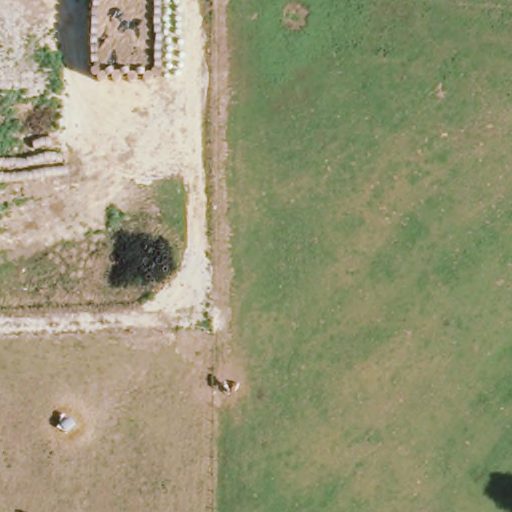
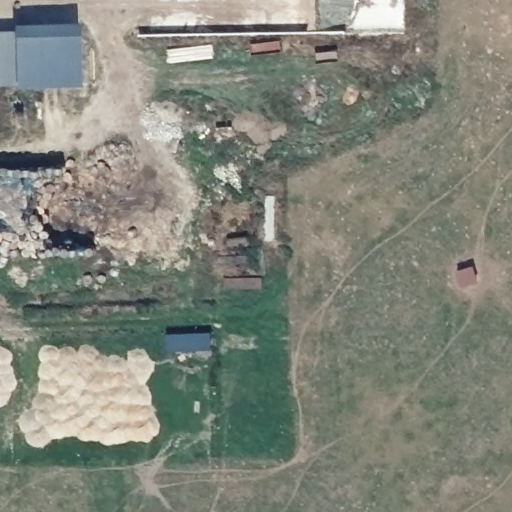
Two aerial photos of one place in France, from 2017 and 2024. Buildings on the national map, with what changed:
new [(79,23),(80,83),(0,85),(0,30),(14,30),(79,23)]

